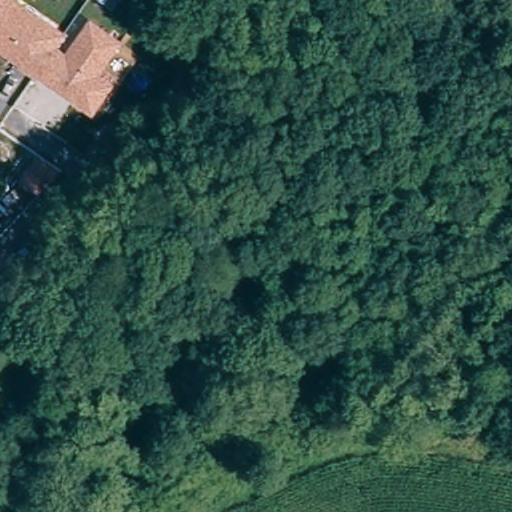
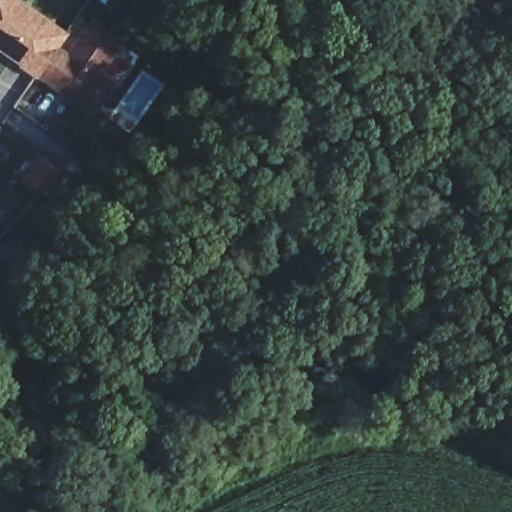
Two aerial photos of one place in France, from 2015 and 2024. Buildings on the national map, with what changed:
unchanged [(58,49),(41,75),(39,77),(25,67),(26,66),(0,48),(0,0),(15,0),(68,35),(58,49)]
unchanged [(58,49),(71,57),(94,22),(124,41),(101,75),(115,85),(97,113),(41,75),(58,49)]

